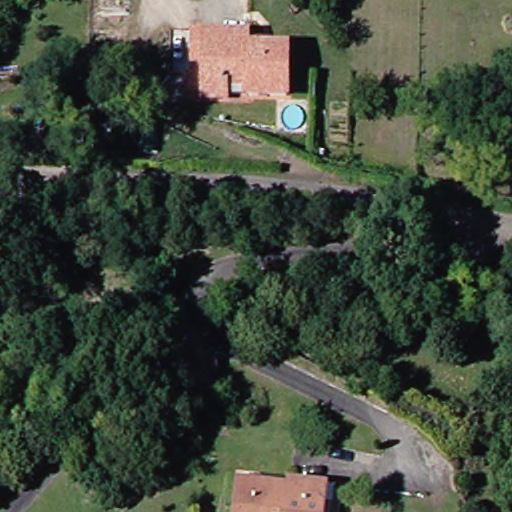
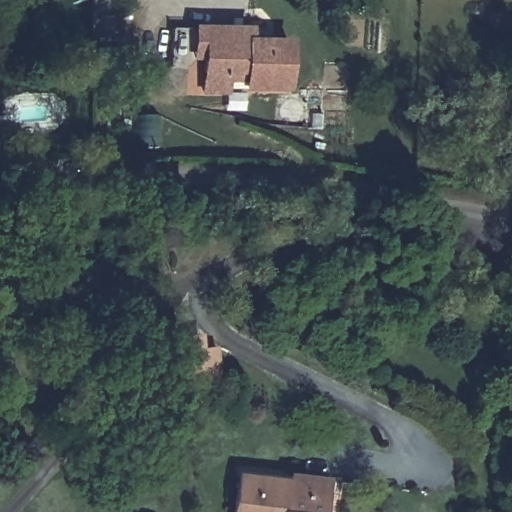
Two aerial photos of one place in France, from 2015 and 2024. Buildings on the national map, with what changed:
unchanged [(229,93),(207,91),(209,58),(196,57),(199,26),(254,30),(253,41),(295,45),(291,95),(250,91),(250,95),(229,93)]
unchanged [(177,335),(204,335),(207,348),(221,346),(226,390),(184,393),(177,335)]
unchanged [(246,474),(333,484),(329,512),(241,512),(246,474)]

